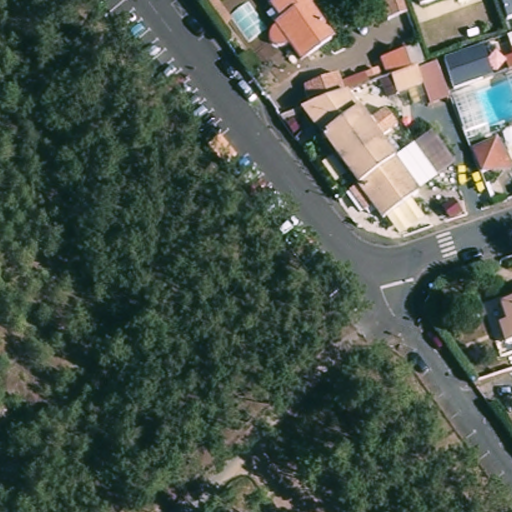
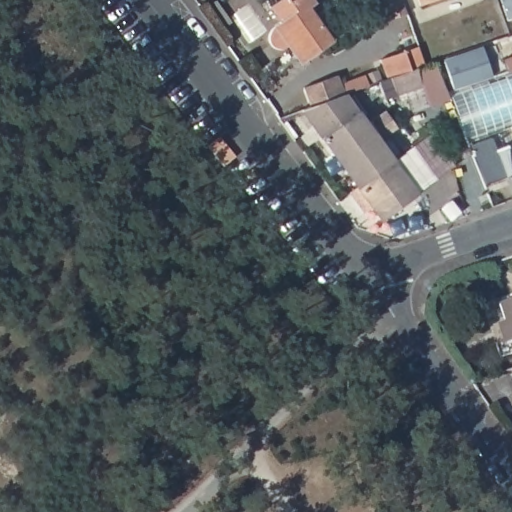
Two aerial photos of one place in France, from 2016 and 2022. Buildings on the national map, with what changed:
unchanged [(285,45),(281,47),(278,49),(274,48),(271,48),(268,45),(266,41),(266,37),(267,33),(269,29),(279,22),(267,6),(276,0),(309,0),(310,2),(304,6),(328,39),(304,57),(298,61),(285,45)]
unchanged [(405,0),(386,6),(384,0),(405,0)]
unchanged [(416,1),(416,0),(417,0),(416,1)]
unchanged [(417,88),(392,98),(387,81),(383,82),(376,62),(398,53),(406,74),(412,72),(417,88)]
unchanged [(295,92),(328,80),(335,99),(340,97),(363,129),(367,126),(382,115),(393,130),(378,141),(374,144),(377,149),(386,143),(397,157),(388,163),(414,198),(378,224),(298,112),(302,111),(295,92)]
unchanged [(205,130),(226,156),(216,164),(213,167),(192,140),(205,130)]
unchanged [(512,167),(483,172),(474,148),(497,139),(512,160),(512,167)]
unchanged [(505,322),(498,303),(512,298),(512,340),(511,340),(503,343),(497,325),(505,322)]

